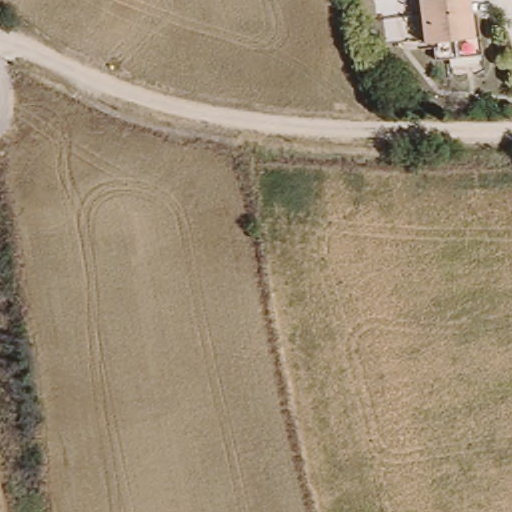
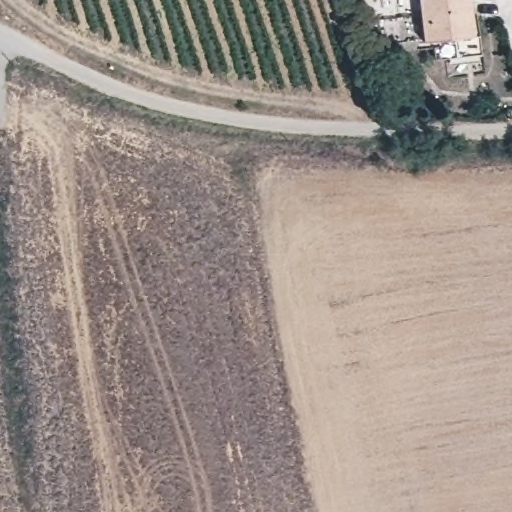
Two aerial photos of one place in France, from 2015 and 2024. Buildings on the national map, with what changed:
unchanged [(478,28),(484,27),(486,46),(440,51),(437,34),(430,35),(426,0),(476,0),(478,28)]

